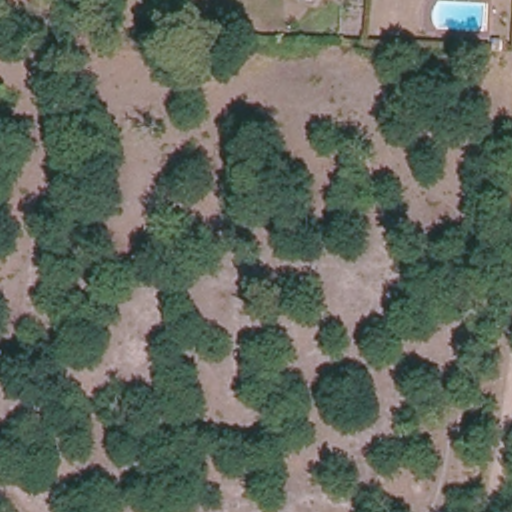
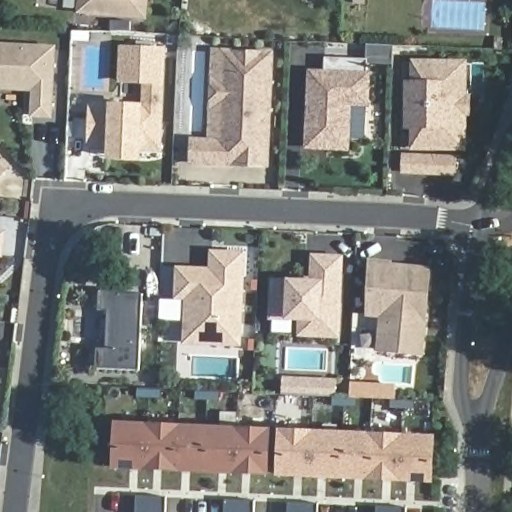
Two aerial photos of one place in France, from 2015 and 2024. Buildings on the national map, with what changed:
new [(78,0),(149,0),(146,20),(77,13),(78,0)]
unchanged [(495,40),(502,40),(502,50),(495,50),(495,40)]
new [(162,149),(141,148),(140,163),(106,161),(106,148),(89,147),(91,101),(108,101),(140,104),(141,84),(118,83),(120,44),(168,47),(162,149)]
new [(54,49),(50,116),(34,116),(35,90),(0,88),(0,46),(54,49)]
new [(270,170),(187,165),(189,137),(209,138),(213,48),(275,51),(270,170)]
new [(305,149),(308,69),(325,70),(325,56),(371,59),(370,108),(353,107),(350,151),(305,149)]
new [(467,95),(471,95),(471,116),(466,116),(466,151),(410,150),(410,129),(404,129),(405,81),(410,81),(410,59),(467,60),(467,95)]
new [(400,174),(401,153),(457,155),(456,176),(400,174)]
new [(0,178),(0,164),(7,171),(0,178)]
new [(3,258),(0,258),(0,230),(6,231),(3,258)]
new [(182,345),(185,301),(174,300),(176,265),(209,266),(210,250),(247,252),(244,348),(182,345)]
new [(298,337),(298,322),(285,321),(268,320),(270,275),(290,278),(310,279),(311,254),(345,255),(341,339),(298,337)]
new [(421,353),(403,351),(402,363),(366,359),(374,264),(430,269),(421,353)]
new [(97,368),(99,348),(107,348),(110,310),(101,310),(102,292),(145,294),(141,370),(97,368)]
new [(334,397),(316,396),(302,395),(285,395),(285,380),(302,381),(317,382),(335,383),(334,397)]
new [(111,469),(114,420),(271,428),(269,476),(111,469)]
new [(275,477),(278,428),(435,436),(432,484),(275,477)]
new [(137,496),(167,497),(167,512),(136,512),(137,496)]
new [(225,500),(255,501),(255,512),(225,512),(225,500)]
new [(288,503),(319,504),(319,512),(288,512),(288,503)]
new [(377,507),(407,508),(407,512),(377,512),(377,507)]

